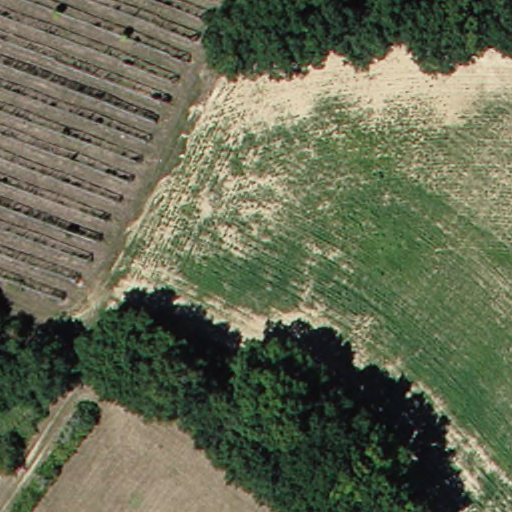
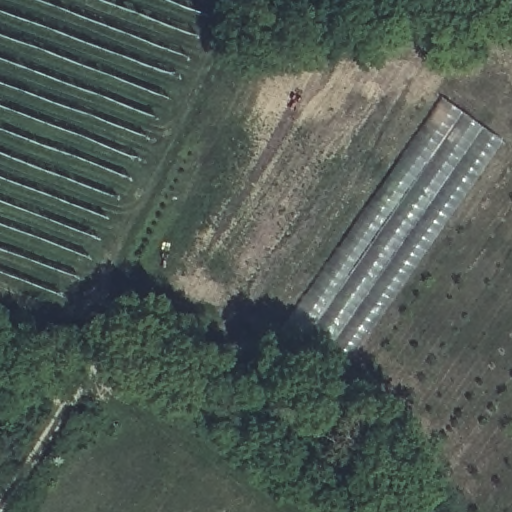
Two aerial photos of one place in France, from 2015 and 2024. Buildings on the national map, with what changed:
new [(438,99),(501,141),(335,377),(277,335),(438,99)]

